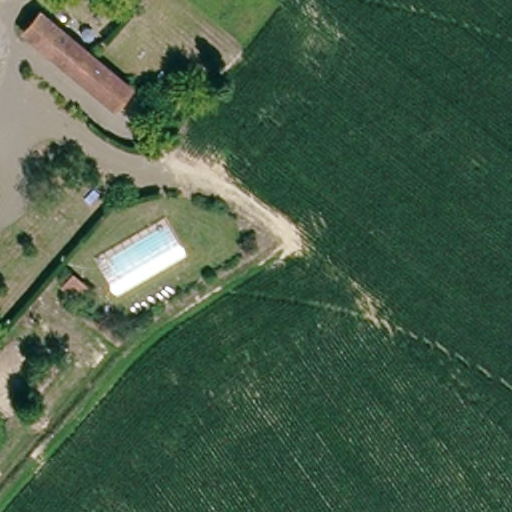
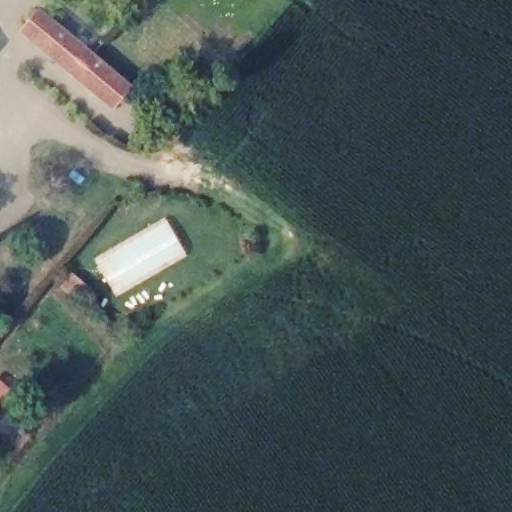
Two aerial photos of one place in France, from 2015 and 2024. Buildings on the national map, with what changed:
unchanged [(42,9),(136,89),(121,107),(26,27),(42,9)]
unchanged [(57,273),(68,268),(75,281),(64,287),(57,273)]

